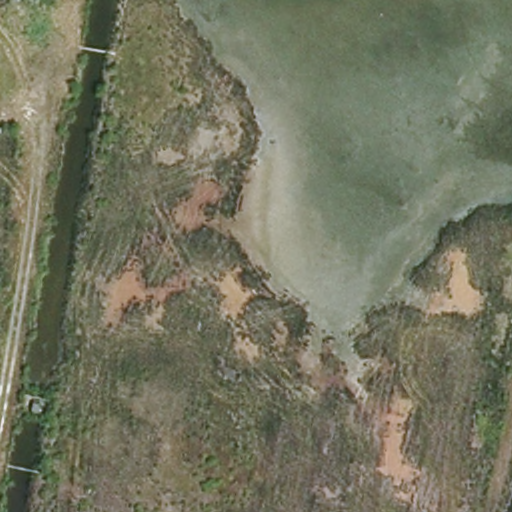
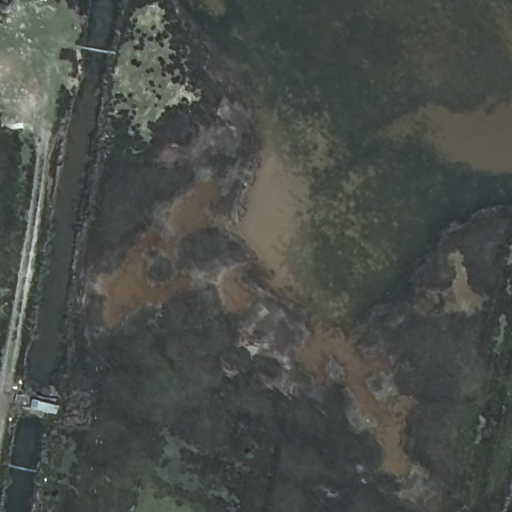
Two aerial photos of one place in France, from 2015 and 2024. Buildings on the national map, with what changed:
unchanged [(64,461),(50,457),(53,448),(66,452),(64,461)]

